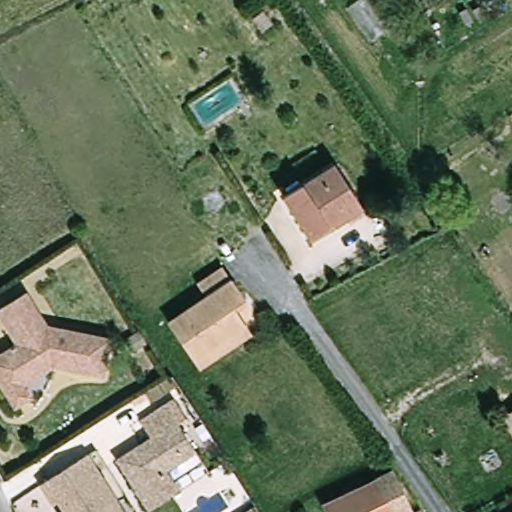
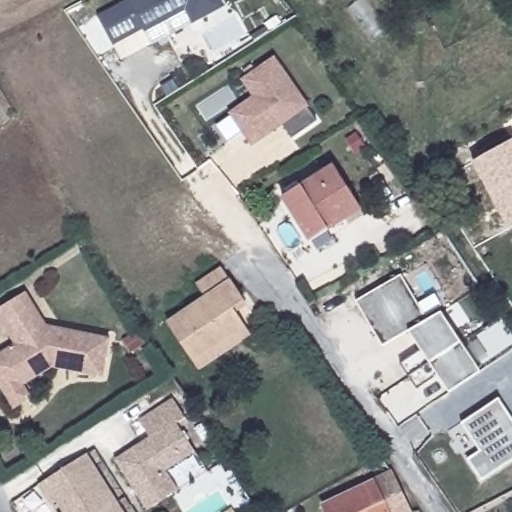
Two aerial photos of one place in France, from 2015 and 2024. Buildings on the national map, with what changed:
new [(127,0),(221,0),(225,7),(193,24),(186,11),(145,32),(144,30),(114,46),(98,16),(127,0)]
new [(275,56),(310,107),(319,122),(293,141),(283,126),(254,147),(229,113),(252,96),(242,79),(275,56)]
new [(509,228),(472,162),(512,140),(512,226),(509,228)]
unchanged [(303,232),(283,200),(334,170),(360,213),(328,232),(309,243),(303,232)]
unchanged [(198,368),(192,360),(170,321),(207,299),(199,285),(225,270),(239,295),(228,302),(244,328),(250,338),(198,368)]
new [(402,274),(429,319),(441,312),(481,371),(449,393),(438,377),(418,389),(402,363),(422,351),(409,331),(382,346),(356,301),(402,274)]
unchanged [(37,398),(20,408),(0,377),(0,359),(22,345),(2,312),(32,293),(52,327),(116,340),(108,377),(57,367),(28,385),(37,398)]
new [(499,398),(512,418),(512,461),(482,482),(467,460),(480,451),(462,423),(499,398)]
unchanged [(179,492),(147,512),(116,461),(151,439),(140,422),(166,406),(196,454),(208,473),(179,492)]
demolished [(505,416),(512,412),(512,427),(505,416)]
unchanged [(103,512),(63,512),(57,502),(52,506),(39,486),(45,482),(88,455),(118,503),(103,512)]
unchanged [(411,512),(327,512),(324,506),(391,472),(411,512)]
unchanged [(123,512),(103,512),(118,503),(123,512)]

